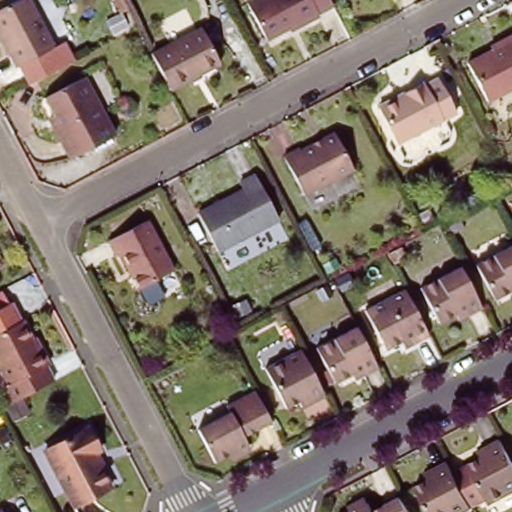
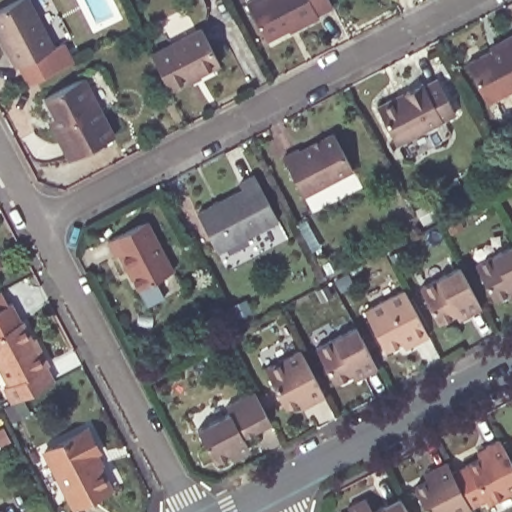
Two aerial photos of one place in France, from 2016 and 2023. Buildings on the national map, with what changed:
unchanged [(54,43),(16,62),(0,31),(0,5),(10,0),(32,0),(54,43)]
unchanged [(324,16),(303,27),(302,25),(271,41),(252,4),(260,0),(335,0),(338,6),(323,14),(324,16)]
unchanged [(151,55),(201,29),(220,64),(170,90),(151,55)]
unchanged [(499,42),(512,36),(512,89),(487,102),(466,64),(501,46),(499,42)]
unchanged [(53,116),(45,98),(84,78),(115,136),(71,159),(55,128),(50,118),(53,116)]
unchanged [(422,83),(424,86),(437,79),(455,113),(396,145),(377,108),(422,83)]
unchanged [(297,145),(298,147),(333,129),(352,165),(303,191),(283,153),(297,145)]
unchanged [(248,190),(245,183),(260,175),(283,220),(222,252),(202,214),(248,190)]
unchanged [(173,271),(138,289),(120,254),(116,256),(108,241),(147,221),(173,271)]
unchanged [(476,259),(512,241),(512,286),(495,295),(476,259)]
unchanged [(0,250),(8,265),(0,270),(0,251),(0,250)]
unchanged [(457,309),(440,319),(421,283),(461,262),(482,303),(470,310),(460,315),(457,309)]
unchanged [(404,343),(386,352),(365,310),(405,289),(430,337),(416,344),(407,348),(404,343)]
unchanged [(12,402),(5,387),(9,385),(0,368),(0,333),(23,321),(38,350),(41,349),(50,365),(47,366),(55,381),(12,402)]
unchanged [(353,369),(336,379),(317,343),(357,322),(379,363),(365,370),(356,375),(353,369)]
unchanged [(300,403),(286,410),(264,369),(300,349),(326,397),(312,404),(303,409),(300,403)]
unchanged [(235,461),(232,456),(216,464),(199,431),(231,414),(227,407),(255,392),(272,423),(245,438),(250,446),(252,452),(235,461)]
unchanged [(88,433),(100,456),(93,459),(111,493),(76,512),(73,512),(45,456),(88,433)]
unchanged [(486,496),(471,503),(452,468),(467,460),(480,452),(477,447),(486,442),(500,435),(512,458),(512,488),(488,500),(486,496)]
unchanged [(455,512),(429,512),(414,482),(427,475),(424,469),(433,464),(446,457),(452,468),(471,503),(455,512)]
unchanged [(370,498),(373,503),(378,512),(355,512),(353,507),(370,498)]
unchanged [(413,512),(379,512),(405,498),(413,512)]
unchanged [(3,512),(0,512),(0,511),(2,510),(3,512)]

